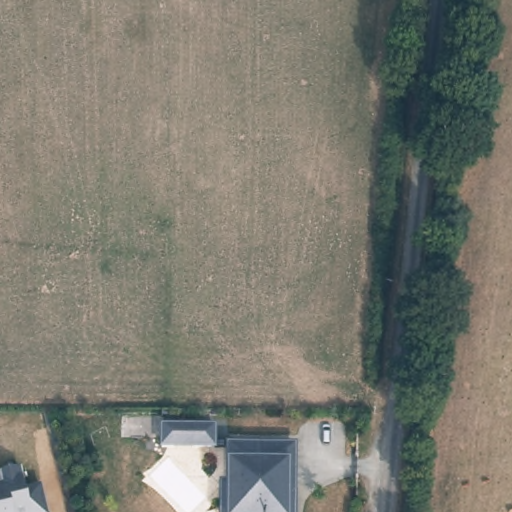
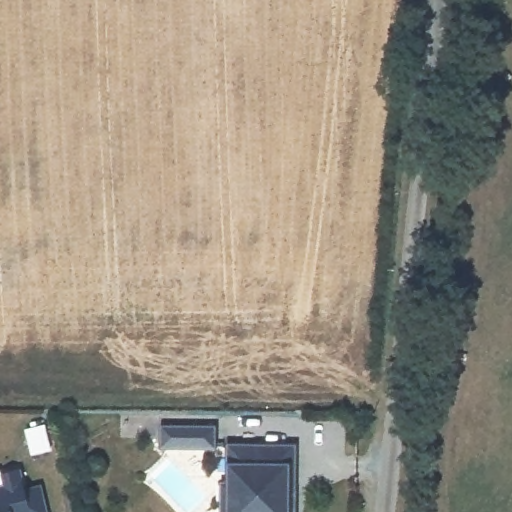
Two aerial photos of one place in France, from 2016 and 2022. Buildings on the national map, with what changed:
unchanged [(215,431),(215,451),(162,451),(162,431),(215,431)]
unchanged [(235,482),(235,445),(299,446),(299,496),(292,496),(292,512),(227,512),(227,482),(235,482)]
unchanged [(6,486),(4,473),(22,470),(27,490),(43,486),(49,512),(0,512),(0,487),(6,486)]

